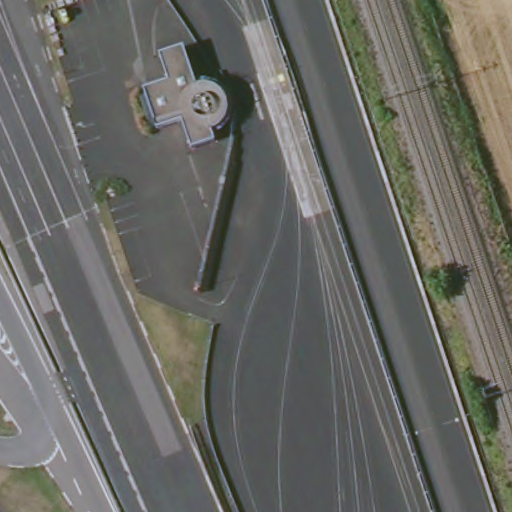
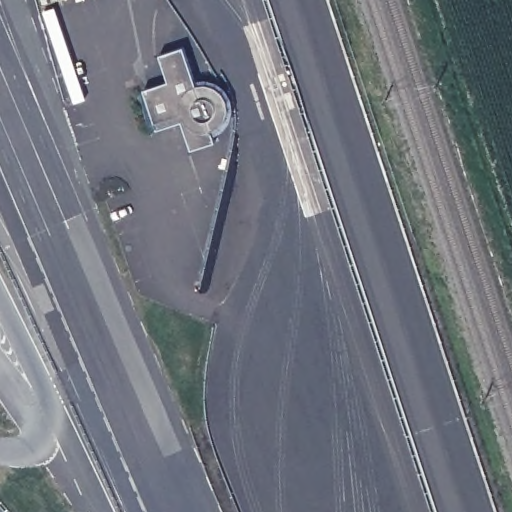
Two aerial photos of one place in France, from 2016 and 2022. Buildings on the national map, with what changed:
unchanged [(214,120),(219,135),(190,144),(182,118),(157,126),(149,99),(174,91),(165,64),(193,55),(202,82),(215,81),(228,89),(232,103),(222,116),(214,120)]

